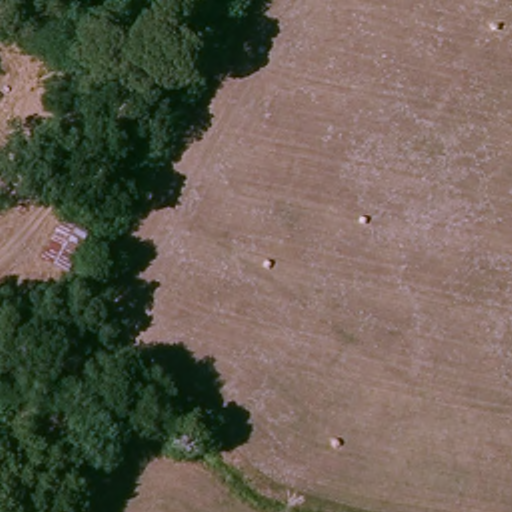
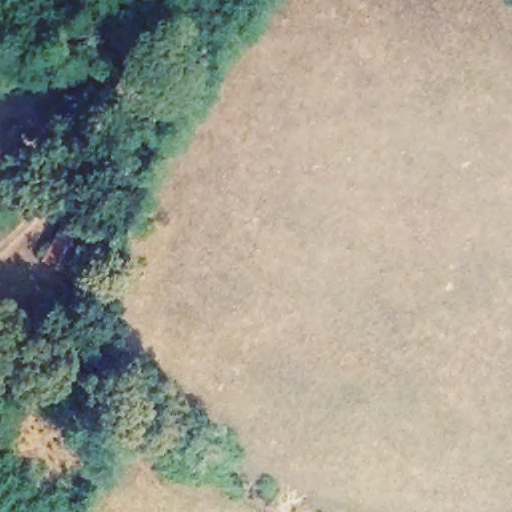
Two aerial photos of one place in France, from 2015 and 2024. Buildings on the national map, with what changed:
[]

